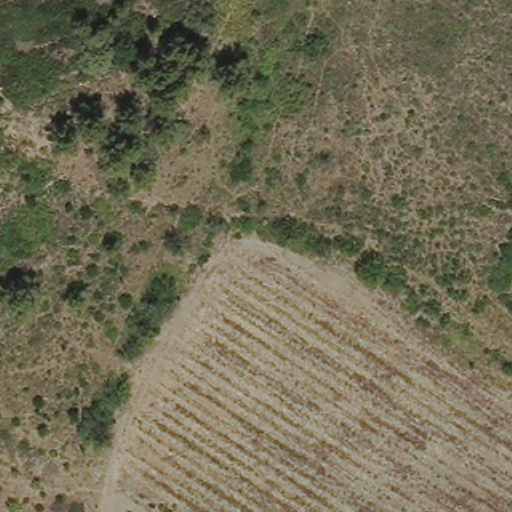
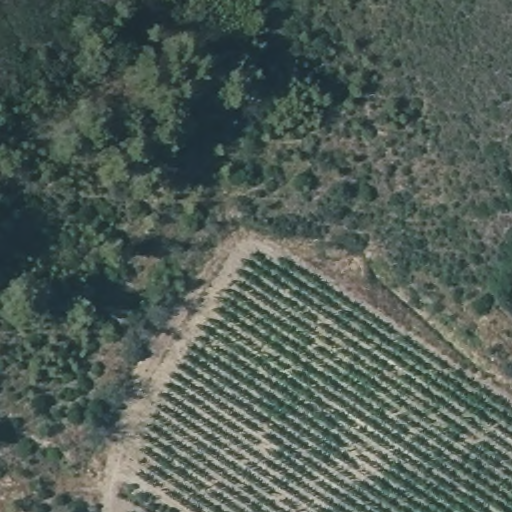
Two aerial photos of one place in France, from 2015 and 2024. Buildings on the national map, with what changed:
[]

